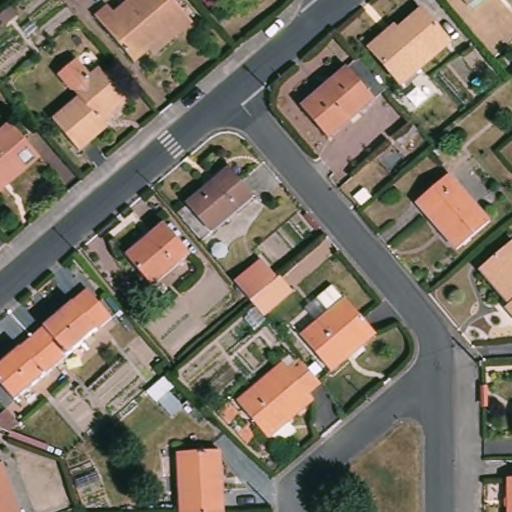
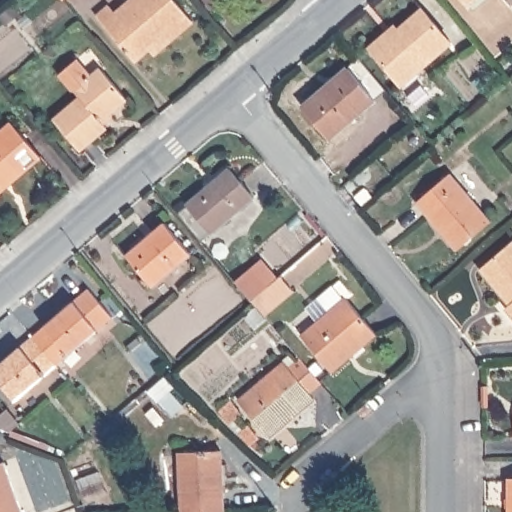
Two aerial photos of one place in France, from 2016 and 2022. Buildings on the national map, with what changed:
unchanged [(128,59),(93,17),(106,6),(114,15),(132,0),(168,0),(187,23),(174,34),(148,55),(141,48),(128,59)]
unchanged [(459,0),(478,0),(468,9),(459,0)]
unchanged [(504,0),(512,0),(512,3),(509,6),(504,0)]
unchanged [(447,39),(397,82),(368,48),(383,35),(387,39),(423,11),(447,39)]
unchanged [(115,92),(90,115),(97,125),(69,149),(44,119),(70,94),(64,87),(90,63),(115,92)]
unchanged [(374,95),(318,142),(289,110),(317,86),(319,91),(349,67),(374,95)]
unchanged [(38,159),(13,180),(0,192),(0,129),(8,123),(38,159)]
unchanged [(382,177),(372,186),(363,176),(374,167),(382,177)]
unchanged [(252,198),(211,233),(184,204),(227,168),(252,198)]
unchanged [(484,223),(452,248),(414,204),(446,177),(484,223)]
unchanged [(186,255),(148,288),(122,258),(160,226),(186,255)]
unchanged [(503,308),(508,303),(483,272),(512,244),(512,318),(503,308)]
unchanged [(258,314),(245,299),(229,280),(244,268),(258,257),(273,276),(287,290),(258,314)]
unchanged [(340,302),(345,299),(373,334),(329,374),(298,338),(313,325),(300,309),(312,299),(328,285),(340,302)]
unchanged [(86,287),(110,317),(52,367),(26,337),(86,287)]
unchanged [(15,398),(0,380),(0,360),(26,337),(52,367),(15,398)]
unchanged [(299,392),(305,398),(262,436),(229,399),(272,362),(275,366),(286,357),(309,383),(299,392)]
unchanged [(198,512),(177,512),(174,452),(214,450),(218,511),(198,512)]
unchanged [(0,466),(17,512),(0,512),(0,466)]
unchanged [(512,485),(512,512),(510,512),(510,485),(512,485)]
unchanged [(218,512),(198,512),(218,511),(218,512)]

